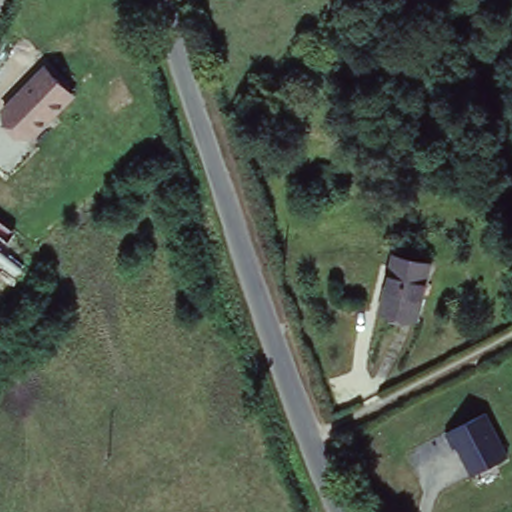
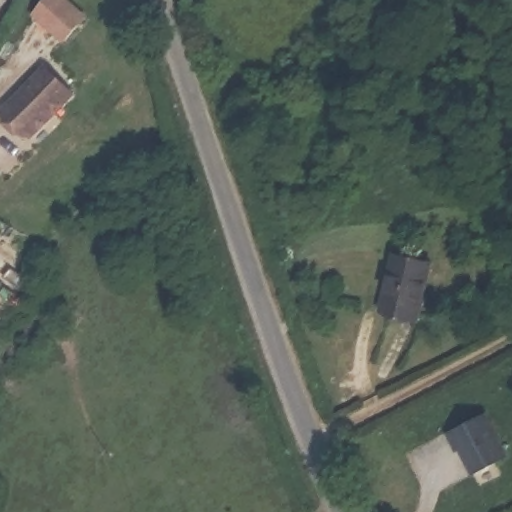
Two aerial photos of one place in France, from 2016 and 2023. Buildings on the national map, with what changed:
new [(48,0),(71,0),(96,21),(70,49),(34,20),(48,0)]
unchanged [(35,138),(18,137),(3,124),(3,107),(44,65),(76,95),(35,138)]
unchanged [(424,267),(410,322),(373,312),(388,258),(424,267)]
unchanged [(441,433),(482,415),(508,459),(466,475),(441,433)]

